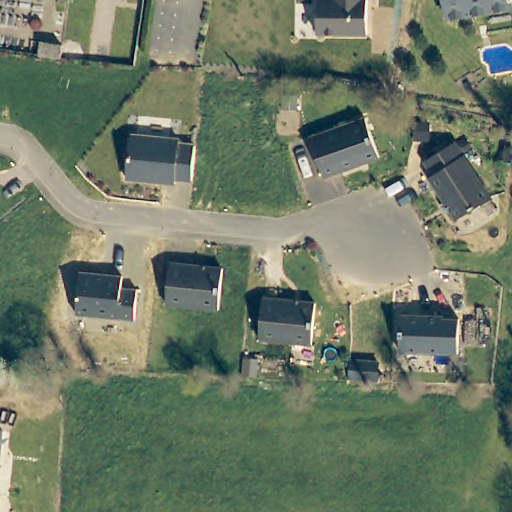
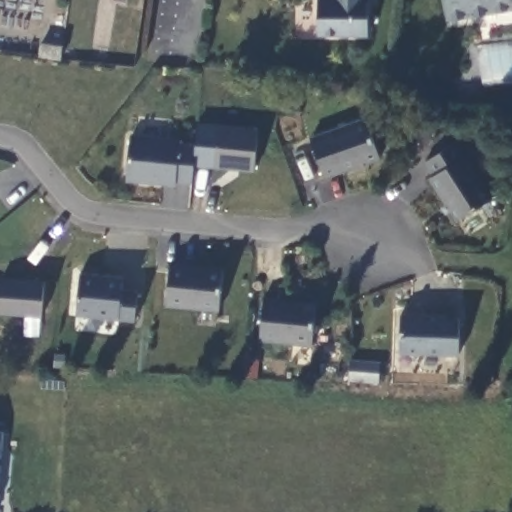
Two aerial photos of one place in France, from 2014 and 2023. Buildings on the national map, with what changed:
unchanged [(306,32),(307,0),(357,0),(356,33),(306,32)]
unchanged [(440,17),(438,0),(505,0),(506,6),(440,17)]
unchanged [(61,39),(59,52),(39,51),(40,37),(61,39)]
new [(218,125),(258,127),(253,171),(214,168),(218,125)]
unchanged [(367,163),(312,182),(299,144),(354,125),(367,163)]
unchanged [(171,142),(171,147),(187,148),(185,166),(184,183),(168,182),(168,186),(118,182),(122,138),(171,142)]
unchanged [(456,142),(491,200),(457,221),(429,178),(432,177),(422,163),(456,142)]
unchanged [(210,310),(159,305),(162,265),(213,270),(210,310)]
unchanged [(123,276),(121,289),(137,291),(135,321),(75,316),(79,272),(123,276)]
new [(41,316),(0,314),(0,302),(2,278),(43,281),(41,316)]
unchanged [(304,304),(301,343),(250,339),(253,300),(304,304)]
unchanged [(428,317),(428,320),(444,320),(442,353),(386,351),(388,315),(428,317)]
unchanged [(5,430),(0,471),(0,429),(5,430)]

